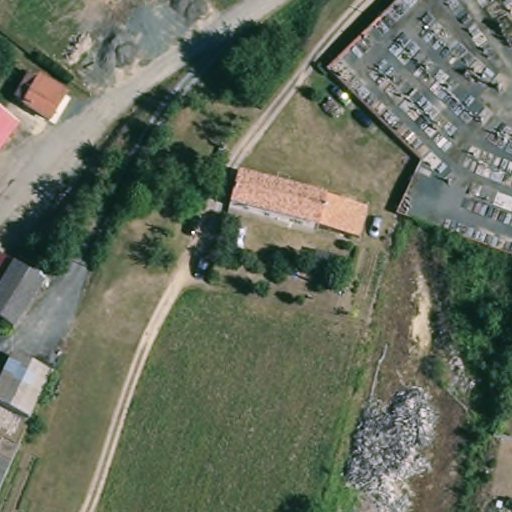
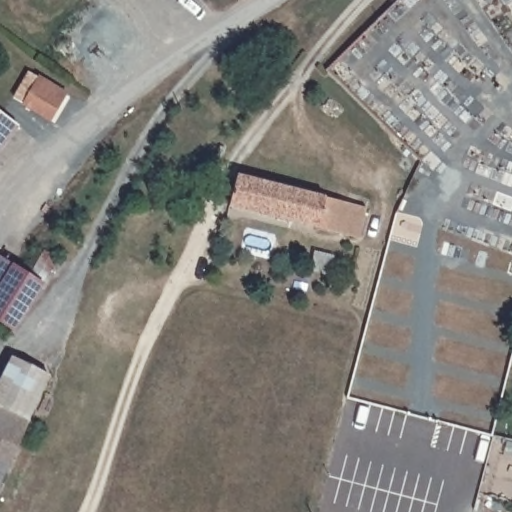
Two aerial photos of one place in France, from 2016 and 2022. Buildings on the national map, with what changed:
unchanged [(54,124),(30,109),(19,103),(33,78),(44,84),(69,99),(54,124)]
unchanged [(14,131),(0,150),(0,121),(14,131)]
unchanged [(346,205),(336,237),(254,206),(265,176),(346,205)]
unchanged [(0,294),(0,259),(16,270),(0,294)]
unchanged [(36,282),(10,329),(0,323),(0,294),(16,270),(36,282)]
unchanged [(54,395),(46,412),(42,421),(1,402),(0,401),(0,397),(16,370),(56,390),(54,395)]
unchanged [(42,421),(30,449),(22,446),(0,430),(0,404),(1,402),(42,421)]
unchanged [(22,446),(15,460),(5,456),(0,464),(0,430),(22,446)]
unchanged [(472,481),(509,491),(505,507),(468,497),(472,481)]

